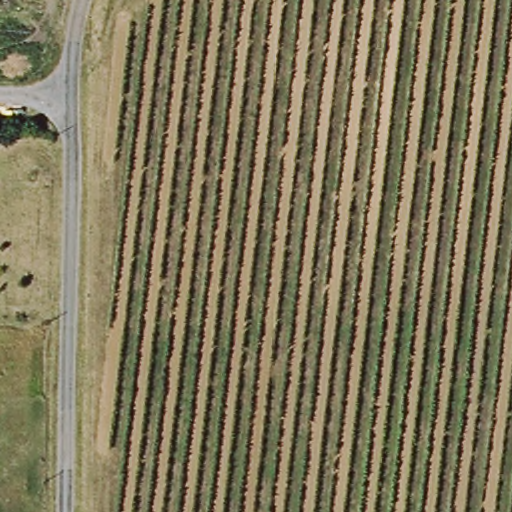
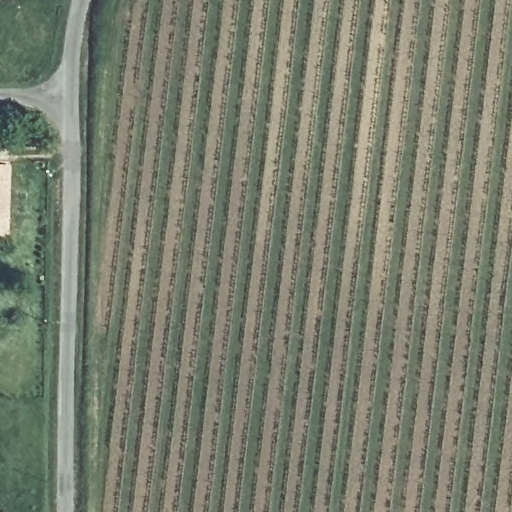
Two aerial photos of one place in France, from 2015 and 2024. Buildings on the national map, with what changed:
new [(7,236),(0,236),(0,165),(8,165),(7,236)]

